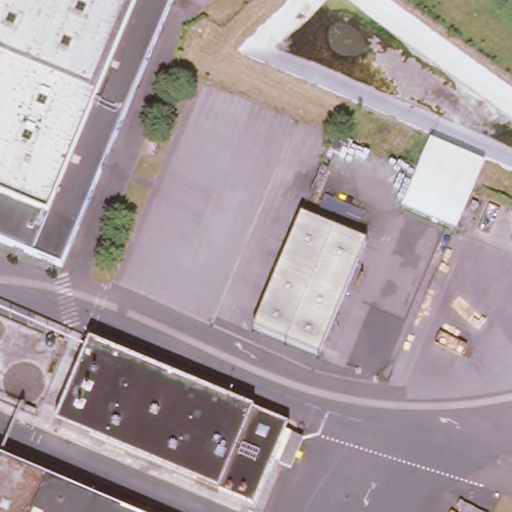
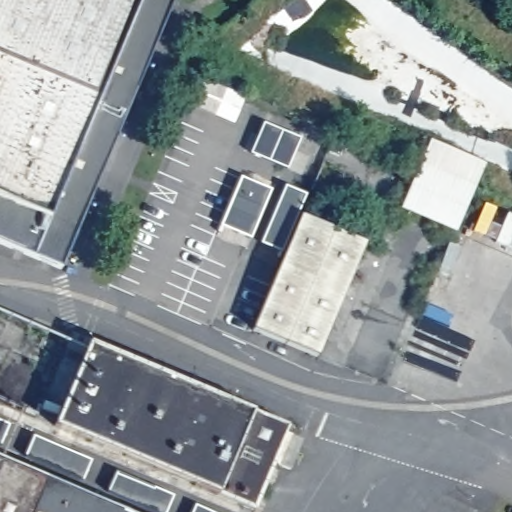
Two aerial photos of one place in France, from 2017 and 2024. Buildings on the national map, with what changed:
unchanged [(107,166),(21,243),(11,245),(0,241),(0,0),(175,0),(107,166)]
new [(287,169),(252,155),(264,126),(299,141),(287,169)]
unchanged [(435,139),(490,164),(460,229),(405,205),(435,139)]
unchanged [(65,268),(11,245),(21,243),(107,166),(65,268)]
new [(270,191),(250,241),(218,228),(239,179),(270,191)]
new [(307,196),(282,253),(260,244),(285,186),(307,196)]
unchanged [(320,358),(257,331),(302,217),(367,244),(320,358)]
unchanged [(287,424),(251,508),(52,424),(86,340),(287,424)]
unchanged [(300,438),(288,467),(277,462),(289,433),(300,438)]
unchanged [(0,512),(0,457),(130,512),(0,512)]

